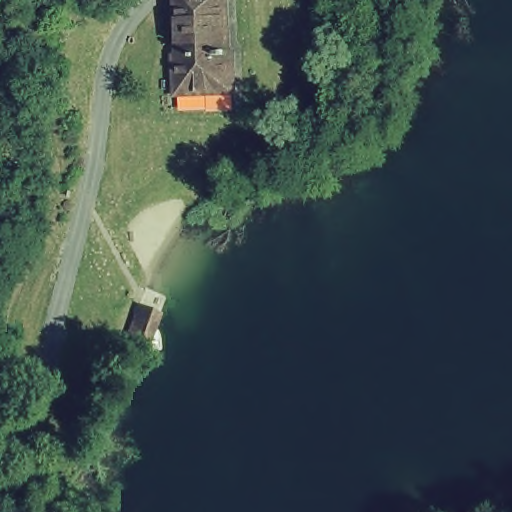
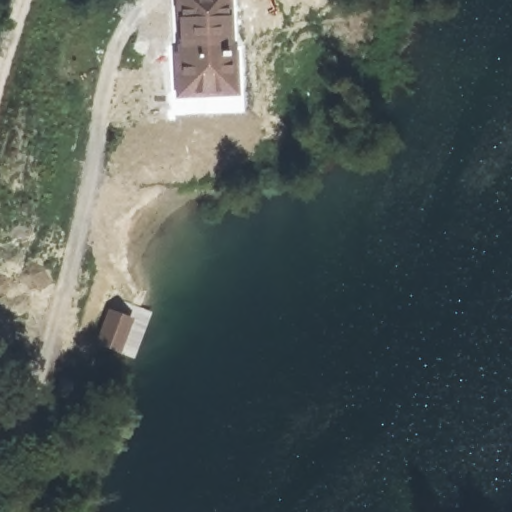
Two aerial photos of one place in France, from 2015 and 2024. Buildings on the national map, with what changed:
unchanged [(232,95),(175,97),(171,1),(193,0),(228,0),(232,95)]
new [(159,315),(149,347),(124,339),(136,305),(159,315)]
new [(133,318),(123,351),(98,343),(110,310),(133,318)]

